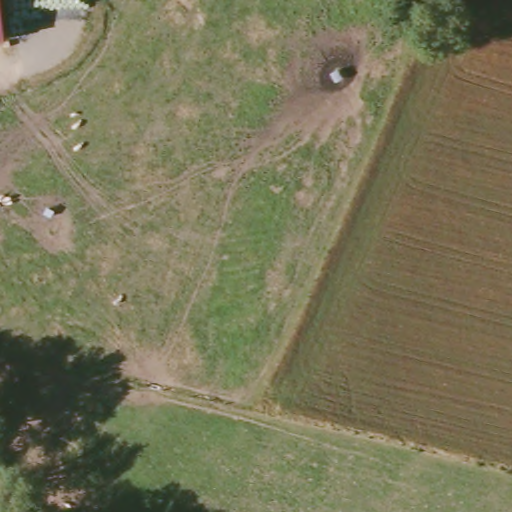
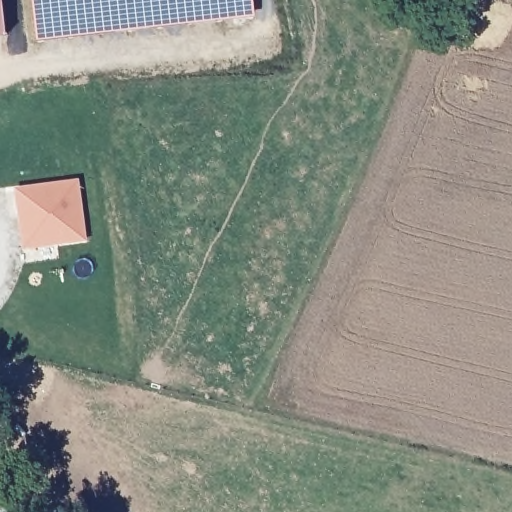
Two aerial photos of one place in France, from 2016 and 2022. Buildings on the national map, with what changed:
unchanged [(8,40),(0,40),(0,0),(3,0),(8,40)]
new [(35,0),(248,0),(250,16),(40,40),(35,0)]
new [(78,179),(85,241),(23,250),(13,187),(78,179)]

